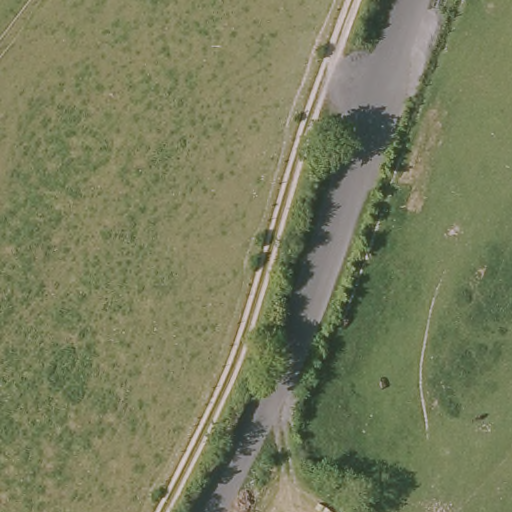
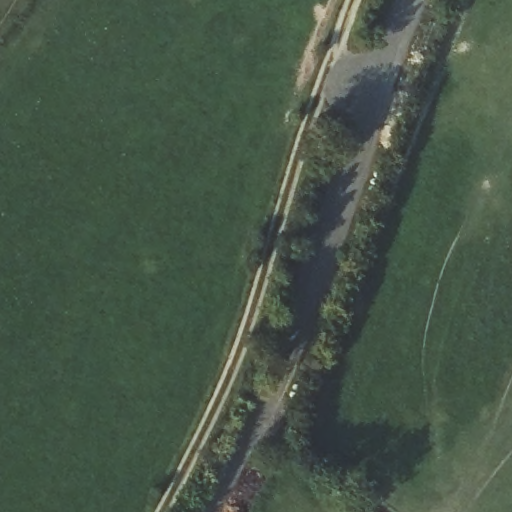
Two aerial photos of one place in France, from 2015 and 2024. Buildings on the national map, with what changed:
[]

